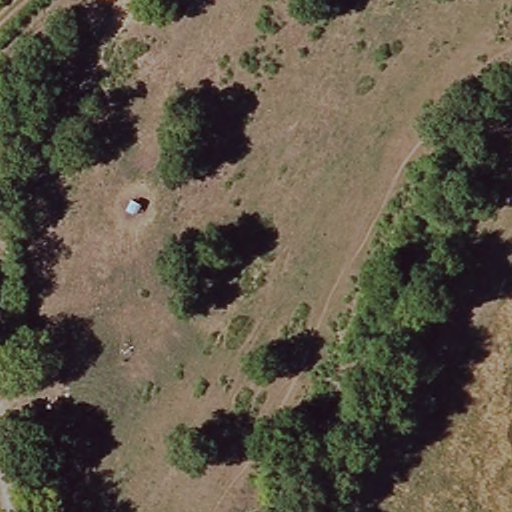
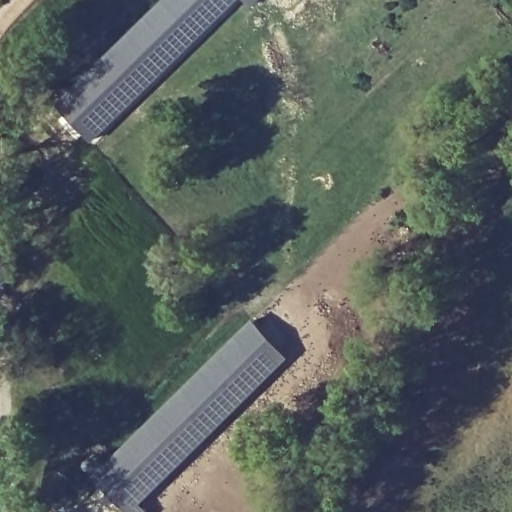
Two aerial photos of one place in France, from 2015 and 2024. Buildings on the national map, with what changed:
new [(235,0),(90,141),(56,106),(167,0),(235,0)]
new [(242,0),(256,0),(249,7),(242,0)]
new [(251,323),(287,356),(139,503),(146,512),(126,512),(91,479),(251,323)]

